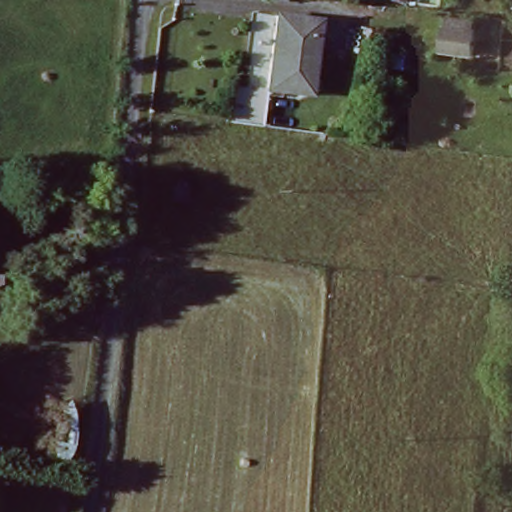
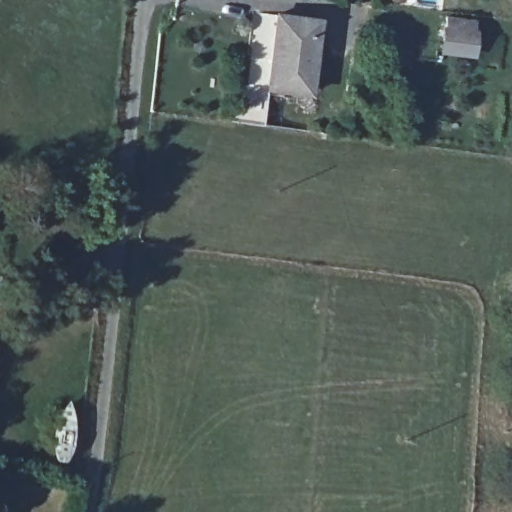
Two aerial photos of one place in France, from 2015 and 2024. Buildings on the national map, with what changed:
unchanged [(282,14),(328,17),(324,40),(278,39),(282,14)]
unchanged [(442,18),(477,19),(477,62),(434,56),(442,18)]
unchanged [(324,40),(319,93),(276,90),(271,136),(236,130),(240,83),(275,85),(278,39),(324,40)]

